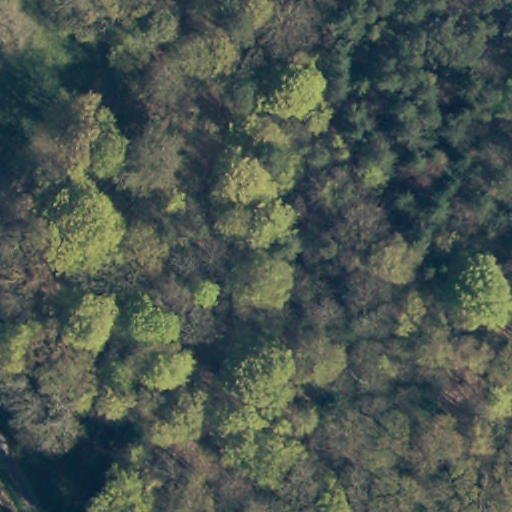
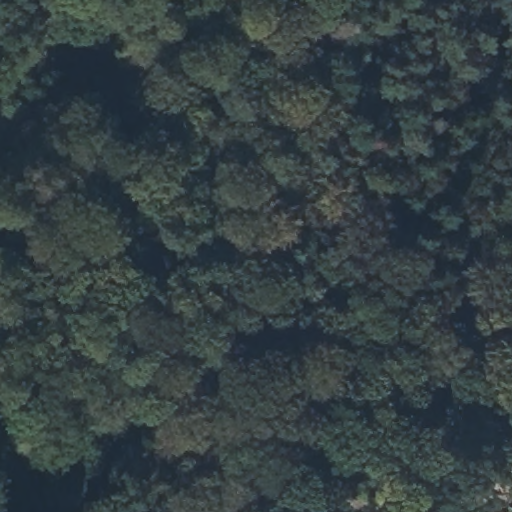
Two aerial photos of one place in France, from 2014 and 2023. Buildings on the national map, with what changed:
[]

